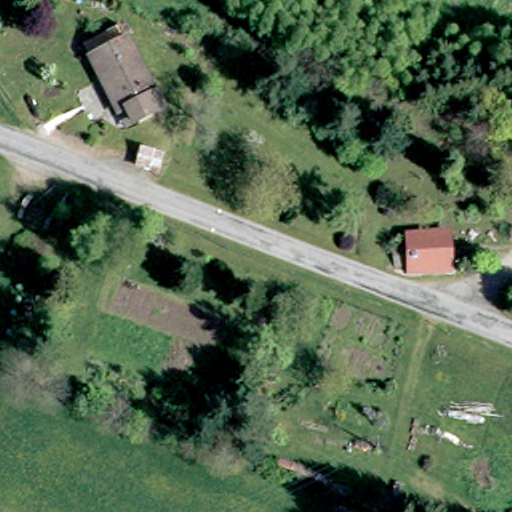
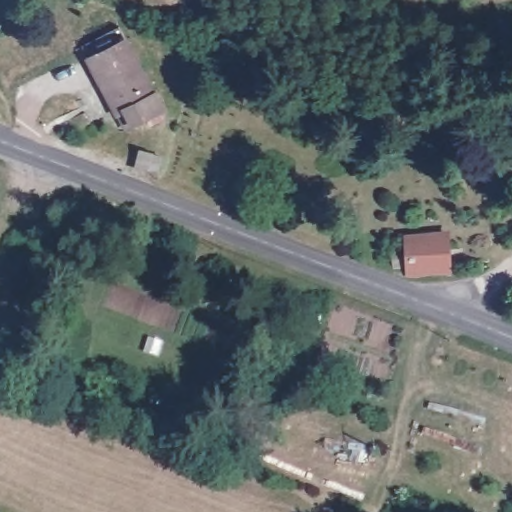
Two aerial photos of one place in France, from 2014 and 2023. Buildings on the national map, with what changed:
unchanged [(97,61),(135,41),(173,112),(144,127),(135,132),(126,115),(97,61)]
unchanged [(393,250),(407,250),(408,237),(449,238),(450,275),(410,276),(410,267),(393,266),(393,250)]

